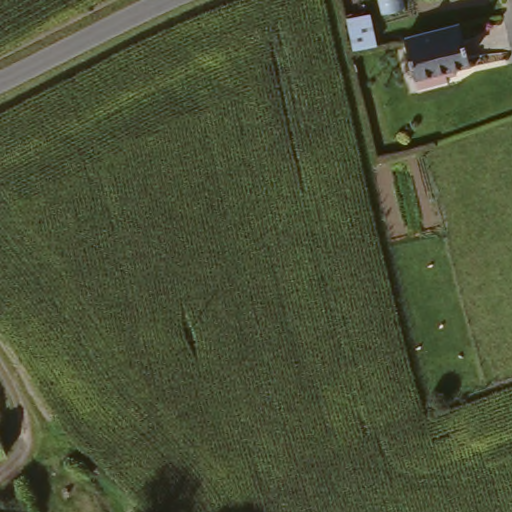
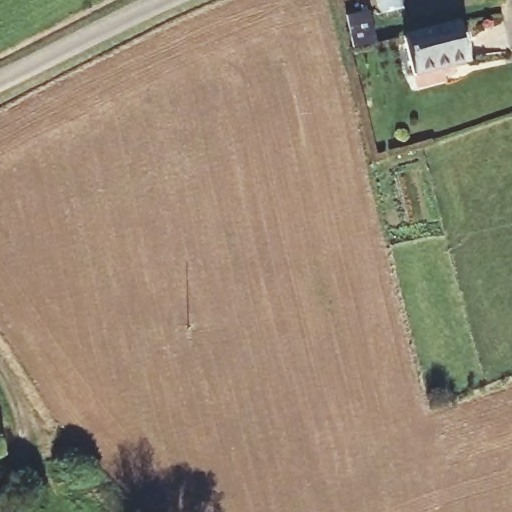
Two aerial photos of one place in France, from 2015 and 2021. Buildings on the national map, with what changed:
unchanged [(410,70),(403,42),(458,27),(464,51),(468,68),(413,83),(410,70)]

